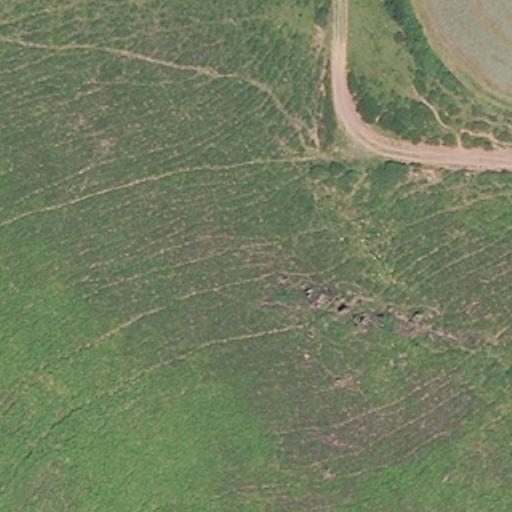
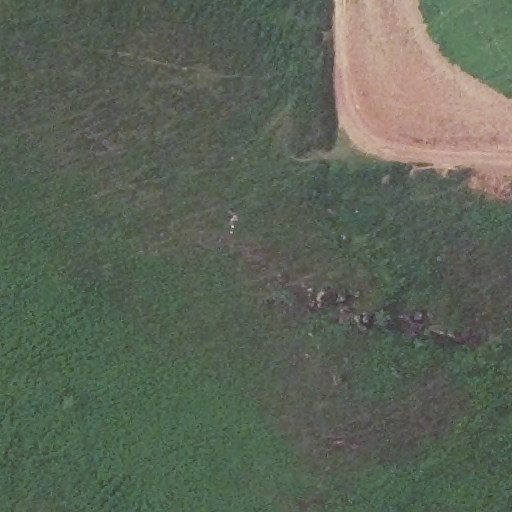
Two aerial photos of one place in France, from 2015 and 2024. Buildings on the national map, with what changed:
[]

